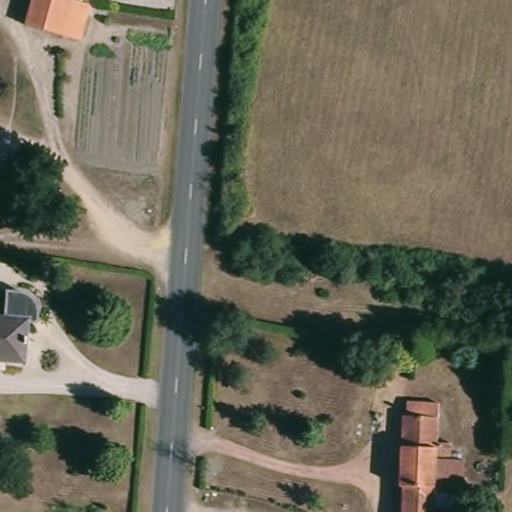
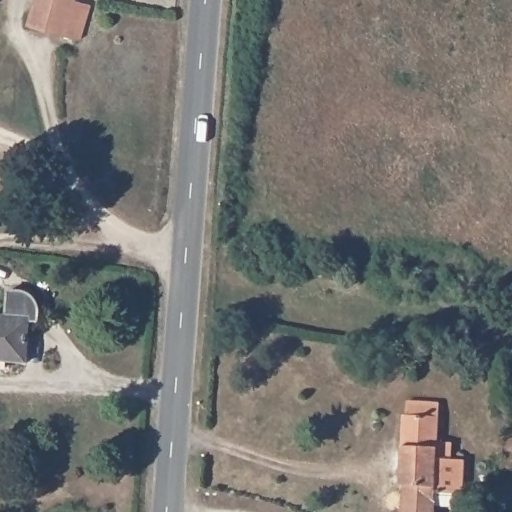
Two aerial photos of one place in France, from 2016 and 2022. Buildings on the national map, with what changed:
unchanged [(69,1),(84,5),(75,39),(22,25),(29,0),(70,0),(69,1)]
unchanged [(5,319),(8,294),(36,297),(44,308),(44,318),(39,317),(30,323),(27,366),(5,364),(4,371),(0,371),(0,319),(5,319)]
unchanged [(403,403),(437,405),(436,442),(449,442),(448,462),(462,462),(460,498),(456,497),(455,510),(435,509),(435,512),(400,512),(401,490),(399,489),(403,403)]

